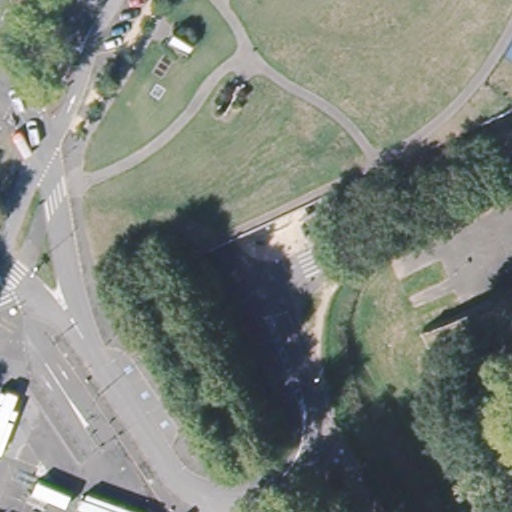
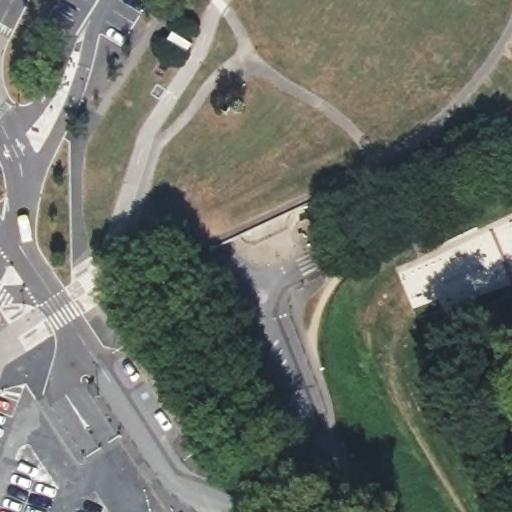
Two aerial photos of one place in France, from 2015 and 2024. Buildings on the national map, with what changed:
unchanged [(220,112),(237,83),(246,87),(230,116),(220,112)]

